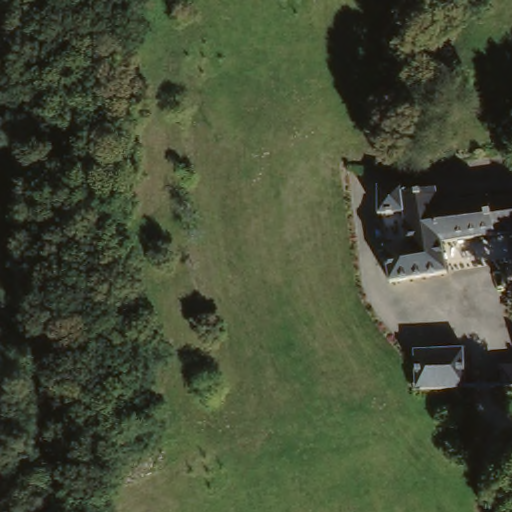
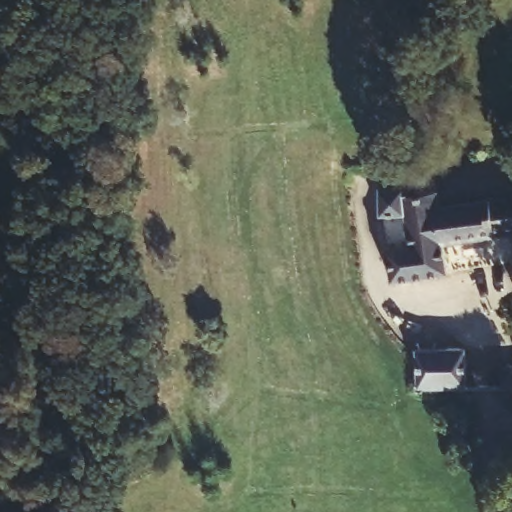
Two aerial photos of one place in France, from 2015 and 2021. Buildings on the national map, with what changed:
unchanged [(380,276),(379,251),(393,251),(393,246),(393,225),(393,216),(378,216),(378,197),(378,191),(408,190),(409,201),(420,201),(442,200),(443,208),(512,203),(512,234),(444,240),(446,277),(399,277),(380,276)]
unchanged [(474,388),(417,390),(417,351),(472,348),(474,388)]
unchanged [(506,370),(512,370),(512,391),(506,391),(506,370)]

